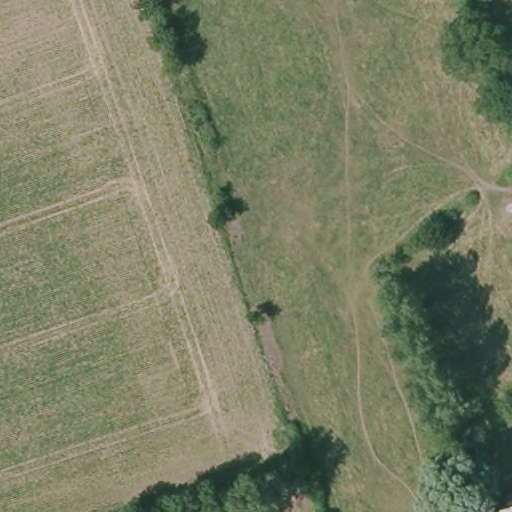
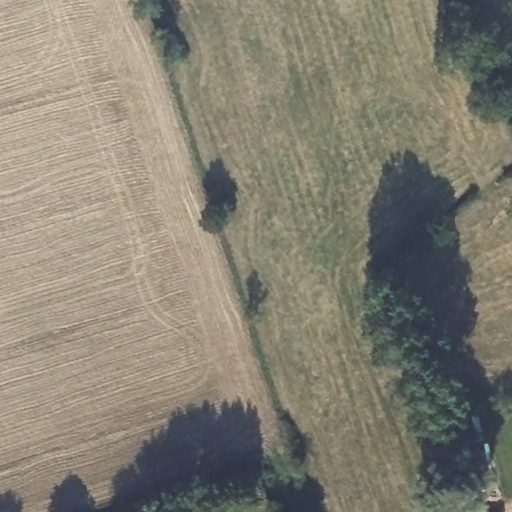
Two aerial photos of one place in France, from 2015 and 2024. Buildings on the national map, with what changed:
unchanged [(512,512),(500,512),(512,508),(512,512)]

